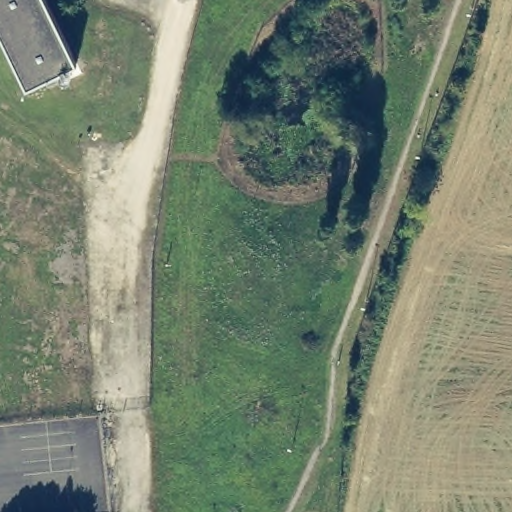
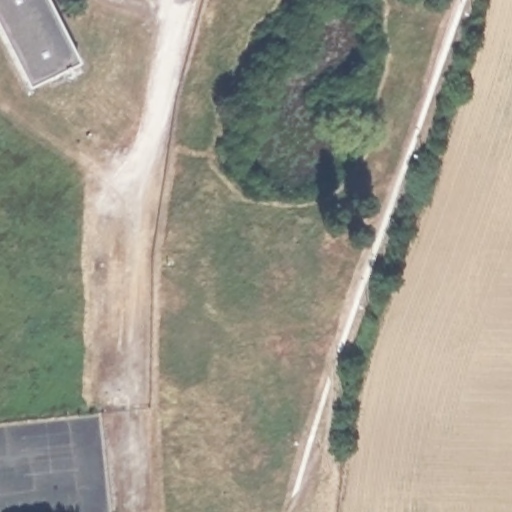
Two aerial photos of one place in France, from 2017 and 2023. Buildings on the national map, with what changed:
unchanged [(76,61),(29,83),(0,26),(0,0),(49,0),(76,61)]

